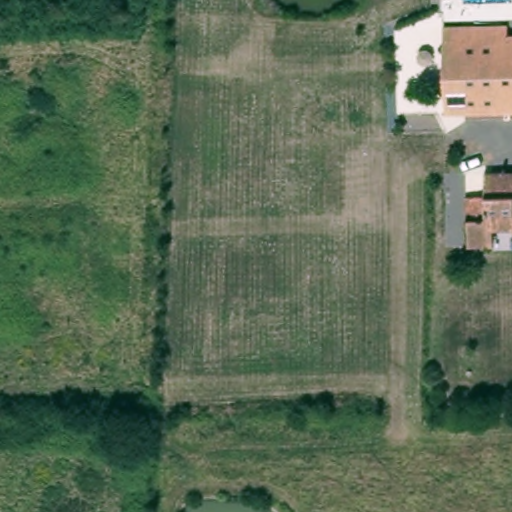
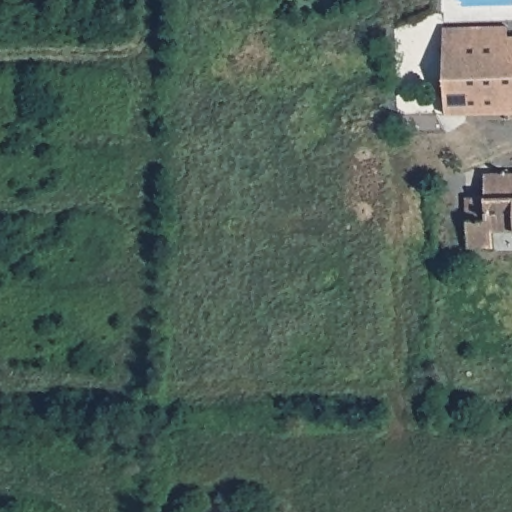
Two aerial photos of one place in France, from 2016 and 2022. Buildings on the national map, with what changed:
unchanged [(509,25),(509,38),(512,38),(512,111),(448,111),(445,27),(509,25)]
unchanged [(488,189),(488,174),(512,174),(512,233),(495,234),(495,251),(466,251),(465,198),(471,198),(471,189),(488,189)]

